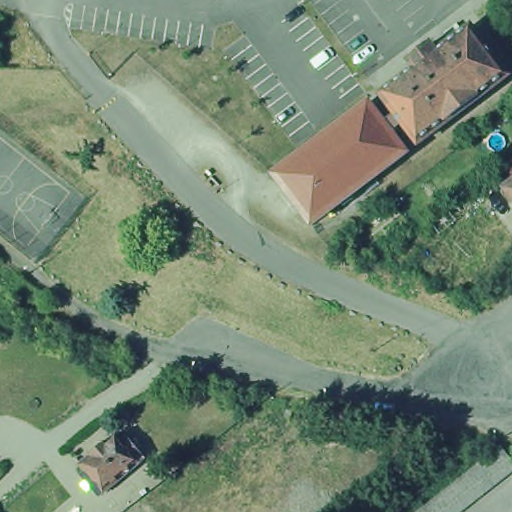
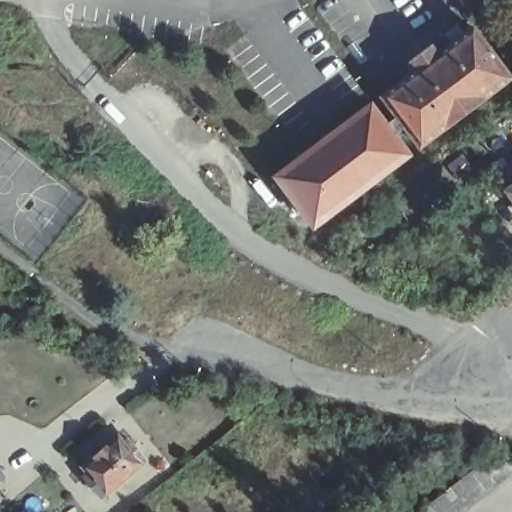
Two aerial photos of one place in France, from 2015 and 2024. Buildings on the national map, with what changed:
unchanged [(386,128),(400,118),(385,98),(419,73),(412,63),(436,46),(442,55),(476,31),(512,80),(512,82),(421,148),(406,127),(392,137),(408,159),(313,229),(276,179),(371,108),(386,128)]
unchanged [(507,194),(496,180),(512,167),(512,200),(507,194)]
unchanged [(104,492),(100,495),(83,475),(87,472),(81,465),(99,449),(117,434),(123,441),(127,438),(143,457),(140,461),(122,477),(105,492),(104,492)]
unchanged [(422,511),(433,503),(443,495),(453,487),(464,479),(475,471),(480,466),(485,463),(495,454),(506,446),(512,454),(512,476),(501,484),(491,492),(481,500),(470,508),(466,512),(422,512),(422,511)]

